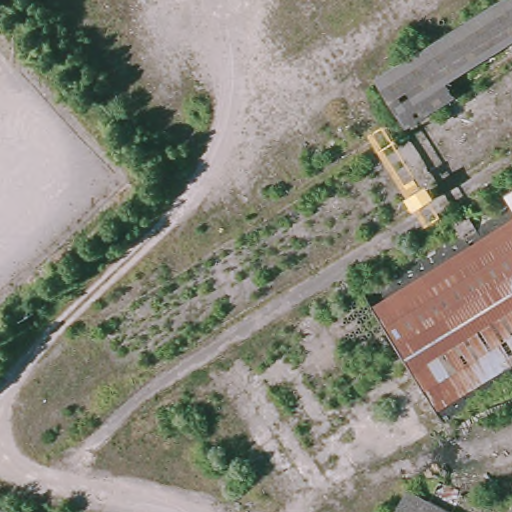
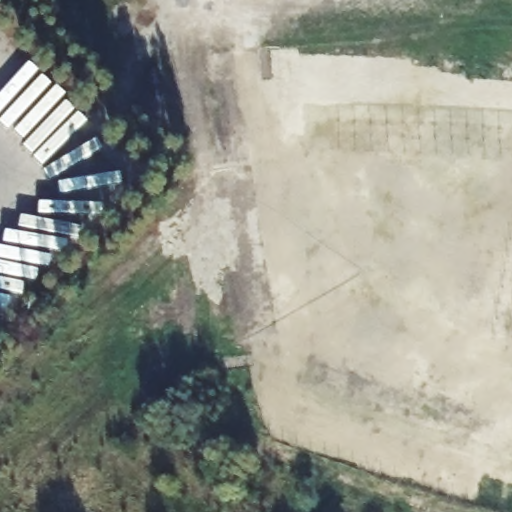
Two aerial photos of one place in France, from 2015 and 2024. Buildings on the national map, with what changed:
demolished [(449,96),(402,126),(371,75),(493,0),(512,0),(512,35),(440,80),(449,96)]
demolished [(497,192),(512,183),(512,216),(502,199),(497,192)]
demolished [(450,226),(462,217),(465,223),(502,199),(512,216),(512,218),(364,306),(354,290),(452,231),(450,226)]
demolished [(512,357),(503,362),(512,375),(439,422),(364,306),(512,218),(512,357)]
demolished [(419,504),(430,485),(483,512),(388,512),(398,492),(419,504)]
demolished [(512,510),(512,512),(501,512),(503,506),(512,510)]
demolished [(0,512),(0,507),(20,512),(0,512)]

